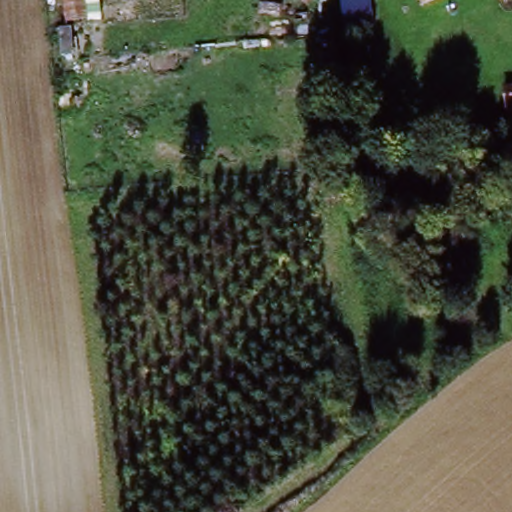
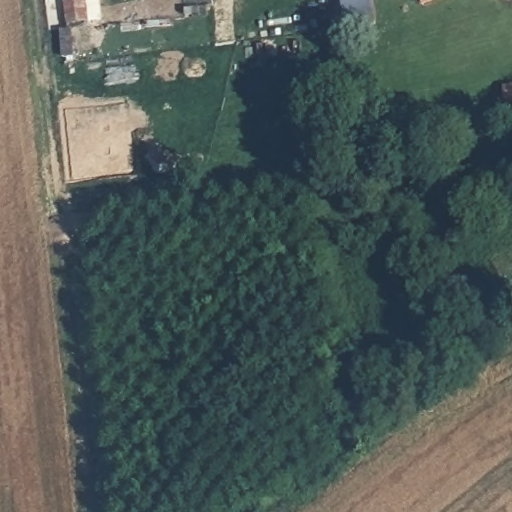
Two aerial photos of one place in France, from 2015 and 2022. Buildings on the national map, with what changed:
unchanged [(343,29),(338,0),(368,0),(371,25),(343,29)]
unchanged [(413,0),(425,0),(415,4),(413,0)]

